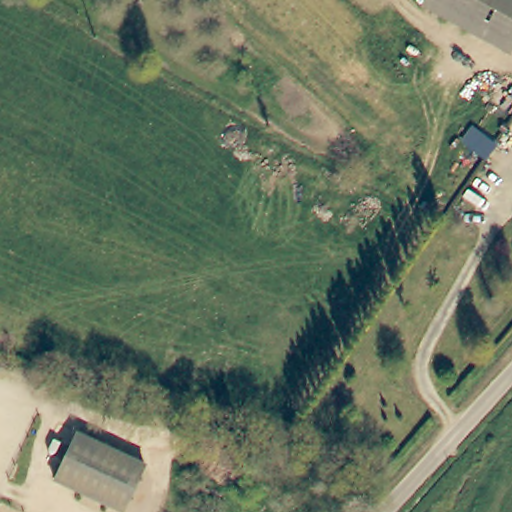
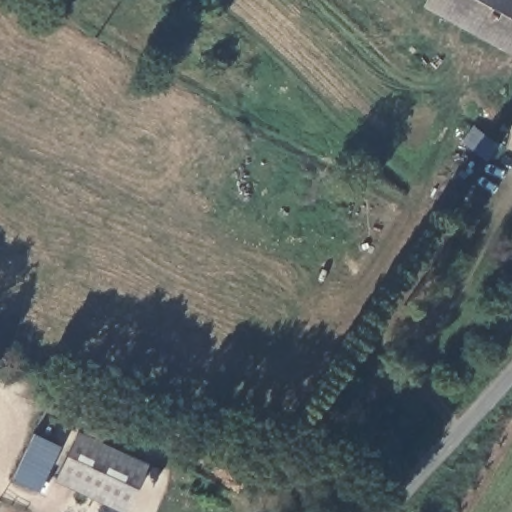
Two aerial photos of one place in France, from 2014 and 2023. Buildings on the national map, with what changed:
unchanged [(512,0),(512,46),(434,0),(512,0)]
unchanged [(484,134),(475,149),(451,133),(461,118),(484,134)]
new [(38,492),(11,479),(33,434),(59,448),(38,492)]
unchanged [(81,434),(149,468),(126,512),(121,512),(59,480),(81,434)]

